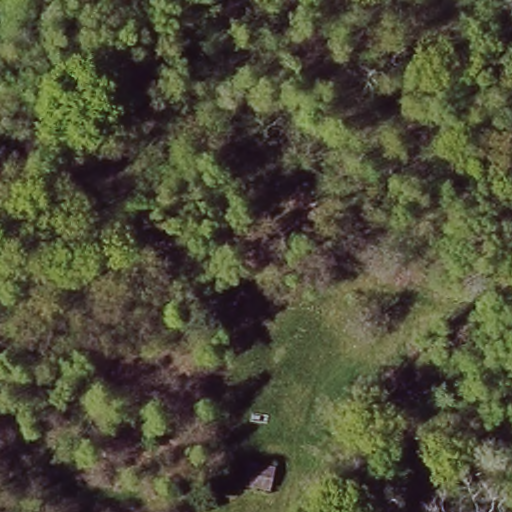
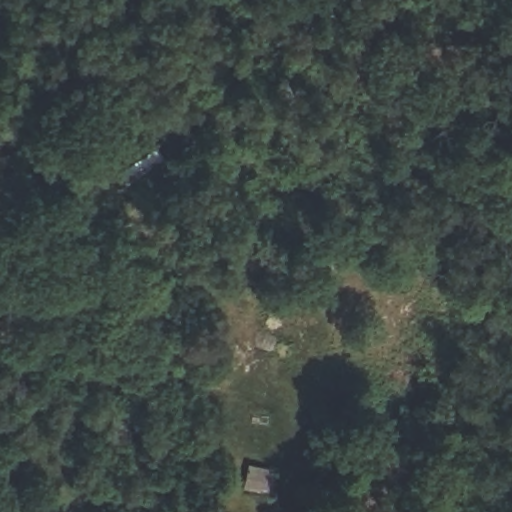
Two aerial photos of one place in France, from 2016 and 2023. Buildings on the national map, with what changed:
unchanged [(276,467),(270,492),(242,486),(248,462),(276,467)]

